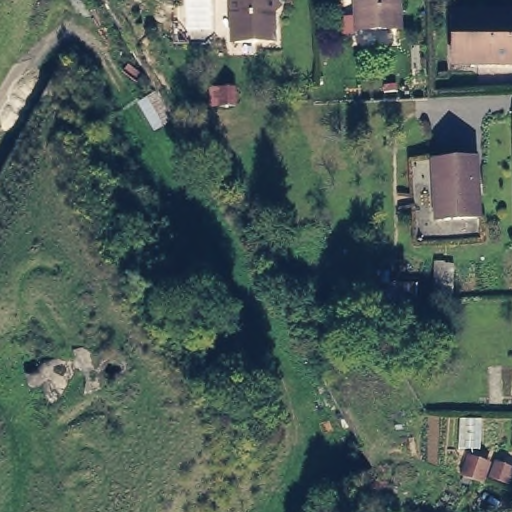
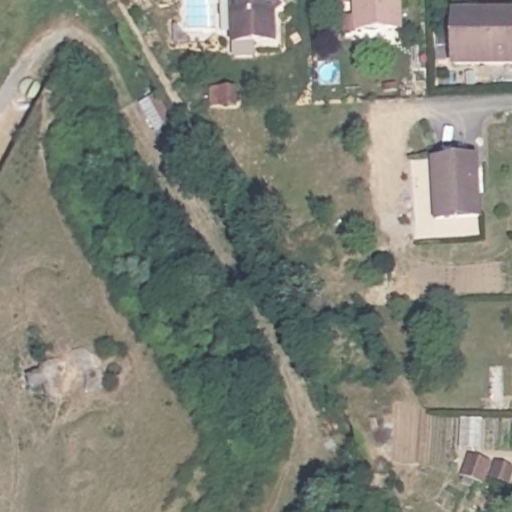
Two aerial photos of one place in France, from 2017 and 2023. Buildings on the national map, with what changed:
unchanged [(229,38),(228,0),(269,0),(277,7),(270,14),(270,43),(248,43),(229,43),(229,38)]
unchanged [(398,30),(355,30),(354,0),(391,0),(392,6),(397,6),(398,30)]
unchanged [(509,61),(509,64),(448,65),(447,13),(471,12),(510,13),(512,13),(512,61),(509,61)]
unchanged [(239,107),(222,106),(222,90),(239,91),(239,107)]
unchanged [(477,219),(436,221),(432,161),(474,159),(477,219)]
unchanged [(486,463),(480,482),(464,476),(463,476),(463,475),(462,475),(462,474),(461,474),(467,457),(486,463)]

